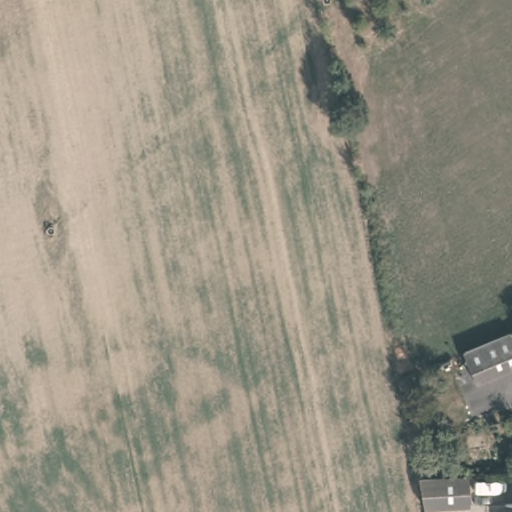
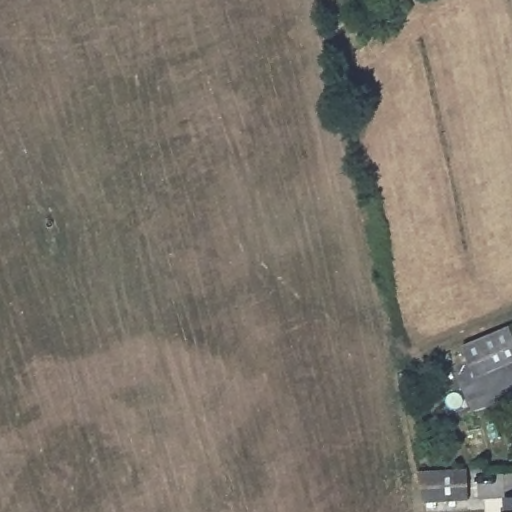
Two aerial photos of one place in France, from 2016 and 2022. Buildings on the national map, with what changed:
unchanged [(511,325),(512,328),(512,359),(475,376),(463,344),(511,325)]
unchanged [(422,501),(417,471),(461,468),(467,468),(467,499),(461,499),(422,501)]

